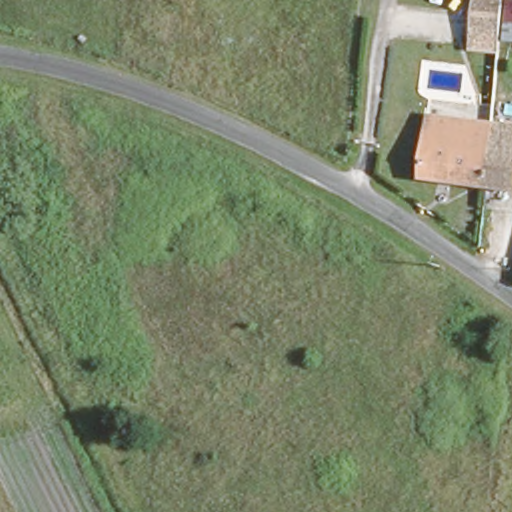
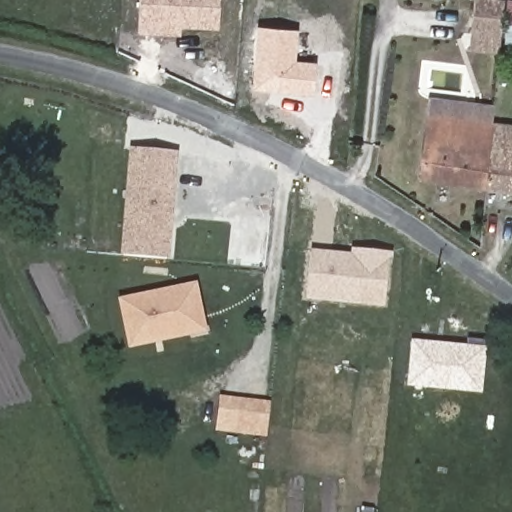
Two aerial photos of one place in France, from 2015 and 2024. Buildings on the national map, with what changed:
new [(177,28),(176,36),(139,34),(141,0),(219,0),(217,30),(177,28)]
unchanged [(501,36),(498,54),(470,52),(475,0),(506,0),(501,36)]
unchanged [(506,0),(512,0),(512,37),(509,37),(501,36),(506,0)]
new [(297,62),(317,64),(315,96),(253,91),(257,28),(299,30),(297,62)]
unchanged [(412,174),(419,113),(485,123),(477,184),(412,174)]
unchanged [(485,123),(512,127),(512,190),(507,189),(477,184),(485,123)]
new [(170,260),(120,256),(128,148),(179,151),(170,260)]
new [(382,308),(306,301),(311,251),(351,256),(352,250),(386,253),(387,266),(382,308)]
new [(129,348),(118,300),(196,284),(207,331),(129,348)]
new [(481,394),(407,387),(412,340),(487,348),(481,394)]
new [(215,432),(219,398),(269,404),(266,437),(215,432)]

